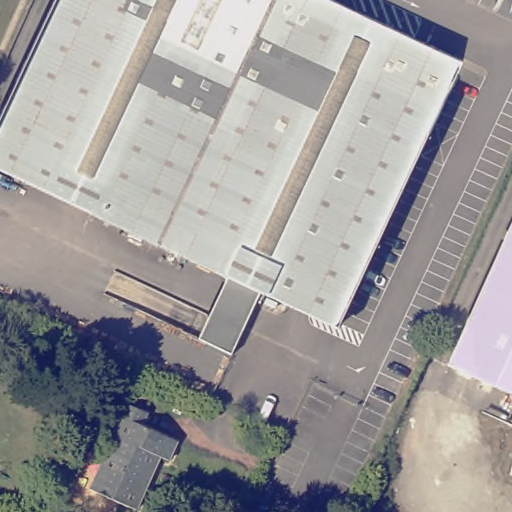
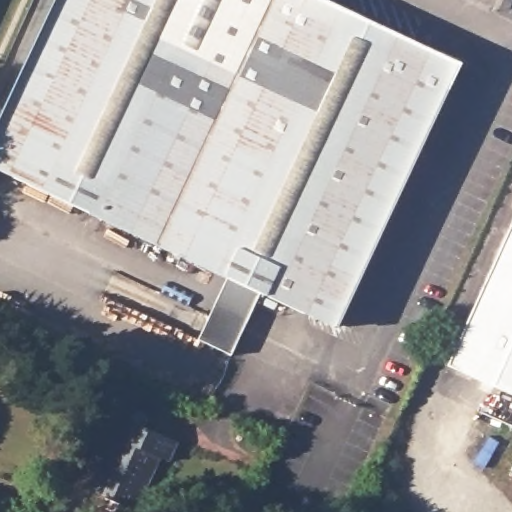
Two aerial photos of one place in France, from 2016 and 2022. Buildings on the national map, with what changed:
unchanged [(451,63),(332,326),(263,295),(227,278),(226,278),(0,176),(0,116),(53,0),(312,0),(347,16),(451,63)]
unchanged [(312,0),(341,0),(347,16),(312,0)]
unchanged [(512,224),(512,399),(447,369),(512,224)]
unchanged [(263,295),(262,299),(236,356),(200,340),(226,278),(227,278),(263,295)]
unchanged [(435,396),(447,369),(512,399),(512,432),(435,396)]
unchanged [(131,403),(151,412),(145,427),(181,443),(172,462),(164,458),(139,511),(93,489),(131,403)]
unchanged [(509,472),(512,465),(512,473),(509,472)]

